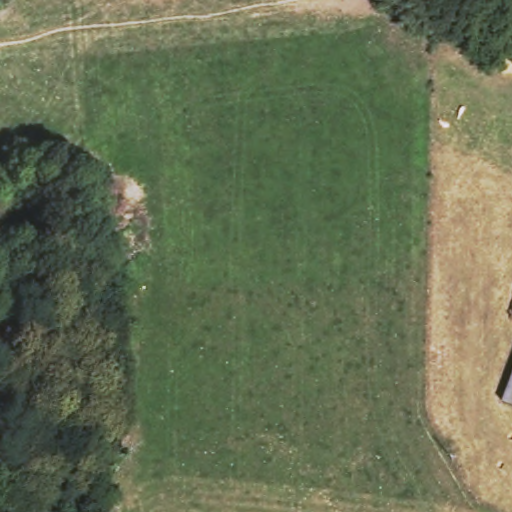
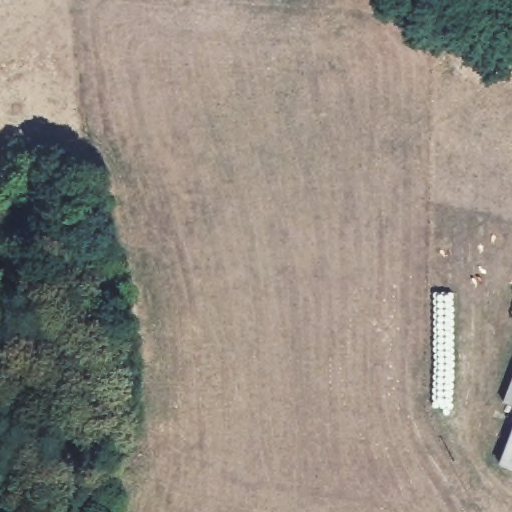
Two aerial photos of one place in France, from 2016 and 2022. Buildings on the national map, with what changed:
unchanged [(512,374),(512,403),(502,399),(512,374)]

